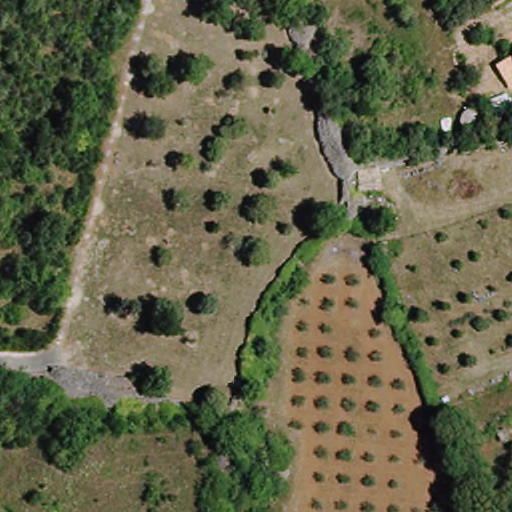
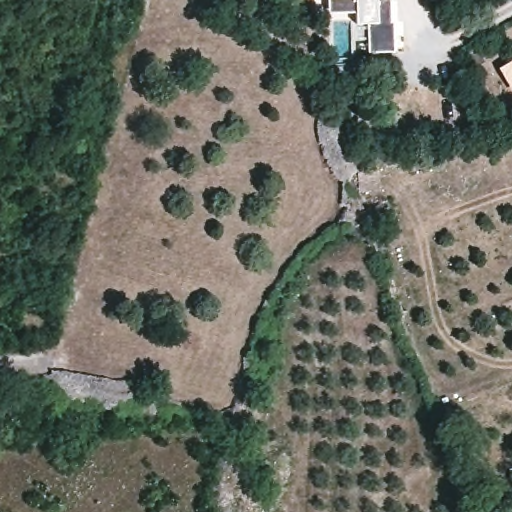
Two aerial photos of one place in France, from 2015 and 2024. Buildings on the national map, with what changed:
new [(394,21),(394,53),(368,53),(367,24),(355,24),(355,13),(327,14),(327,0),(390,0),(391,22),(394,21)]
unchanged [(498,68),(512,59),(512,91),(498,68)]

